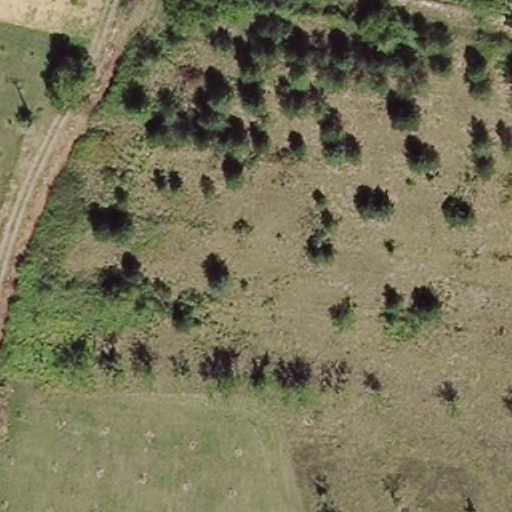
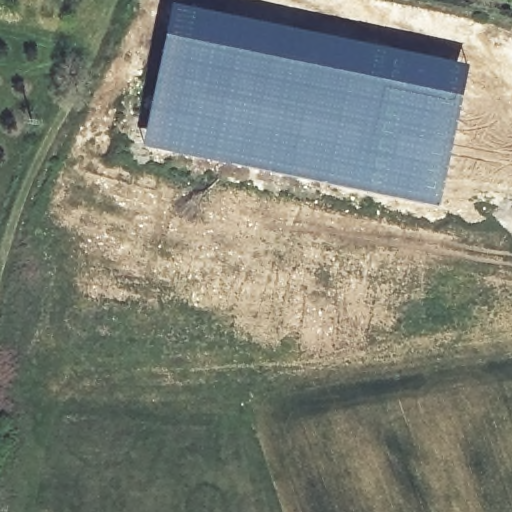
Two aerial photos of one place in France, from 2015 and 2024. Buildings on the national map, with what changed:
new [(171,1),(415,51),(464,65),(460,93),(455,128),(438,204),(395,194),(141,145),(171,1)]

